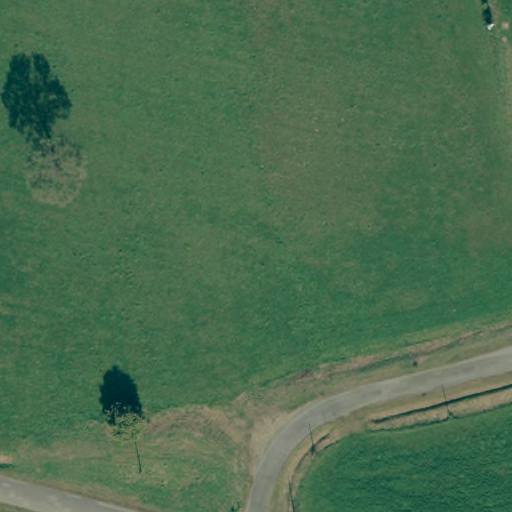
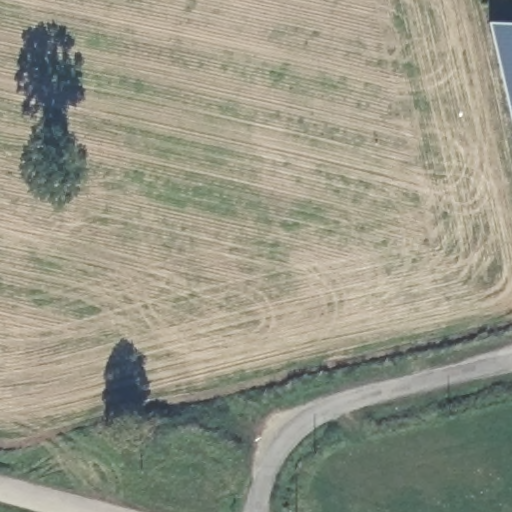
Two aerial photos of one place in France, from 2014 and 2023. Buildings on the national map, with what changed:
new [(512,115),(489,23),(512,24),(512,115)]

